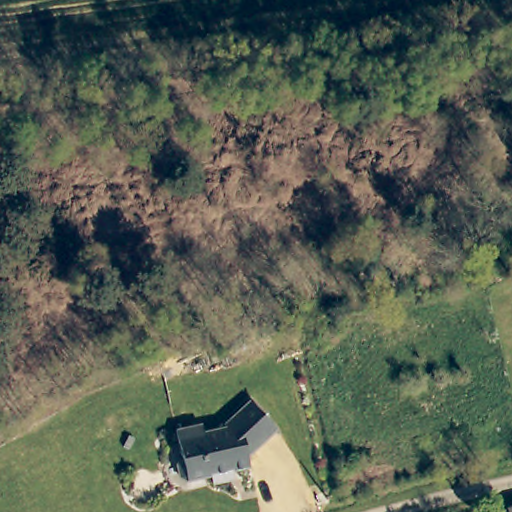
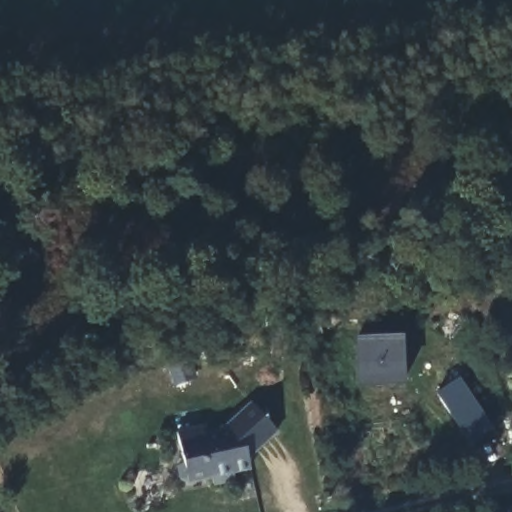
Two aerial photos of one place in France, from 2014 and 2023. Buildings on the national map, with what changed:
new [(404,384),(354,385),(353,339),(404,338),(404,384)]
new [(470,446),(435,391),(459,374),(494,427),(470,446)]
unchanged [(279,431),(251,457),(254,468),(237,472),(230,480),(217,482),(216,476),(192,481),(185,477),(183,463),(187,458),(182,433),(207,428),(209,437),(225,433),(255,402),(279,431)]

